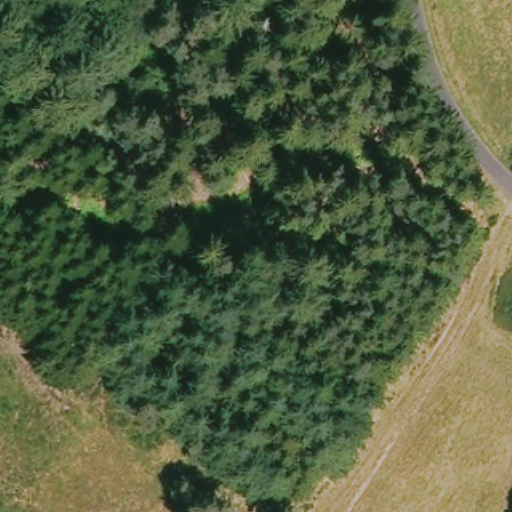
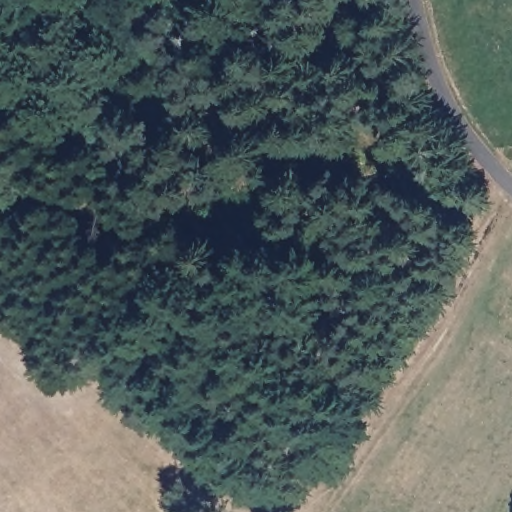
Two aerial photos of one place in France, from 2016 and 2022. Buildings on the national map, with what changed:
[]

